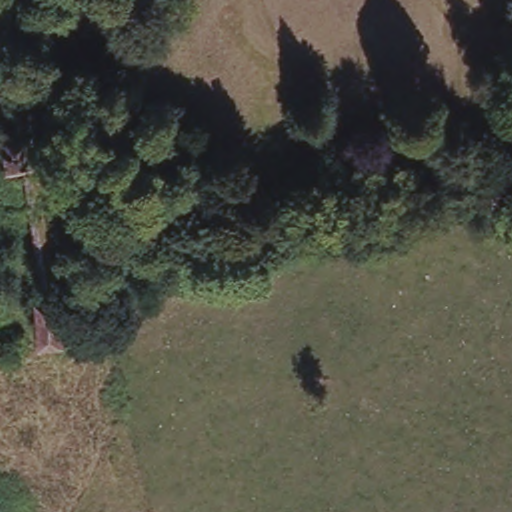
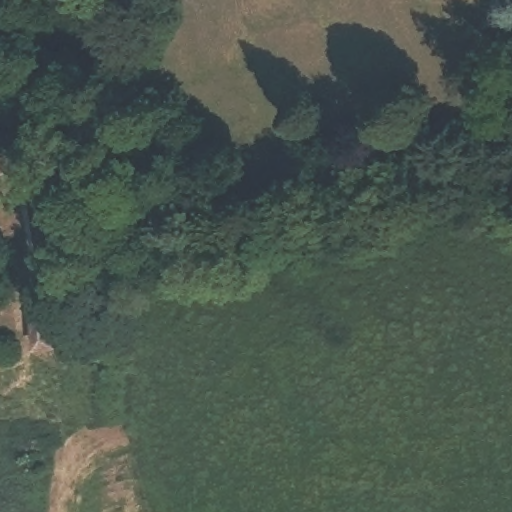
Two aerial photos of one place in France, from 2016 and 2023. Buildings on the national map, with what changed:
unchanged [(52,303),(52,337),(26,341),(21,306),(39,303),(17,169),(0,172),(0,126),(21,122),(52,303)]

